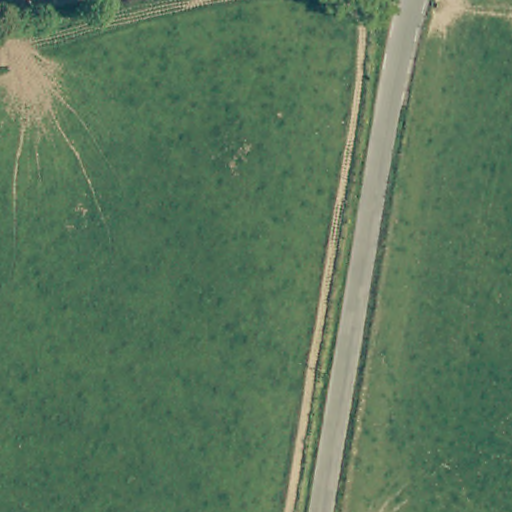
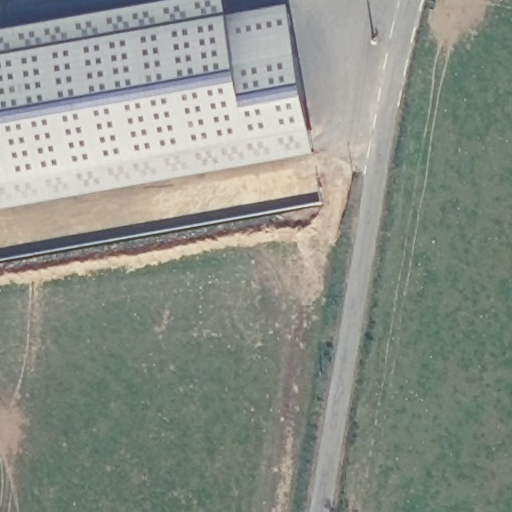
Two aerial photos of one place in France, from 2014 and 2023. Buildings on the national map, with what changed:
new [(231,17),(289,6),(316,154),(253,165),(0,210),(0,32),(178,0),(227,0),(231,17)]

